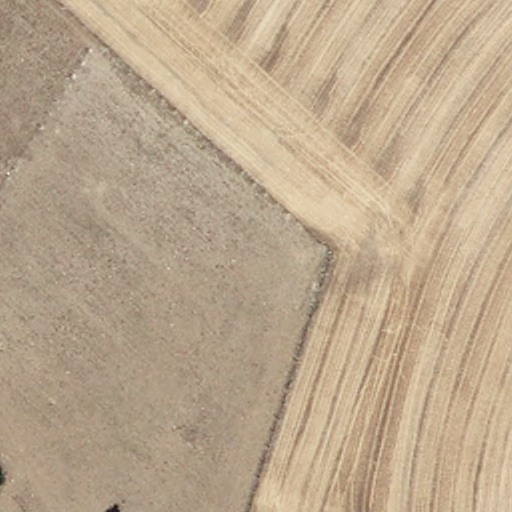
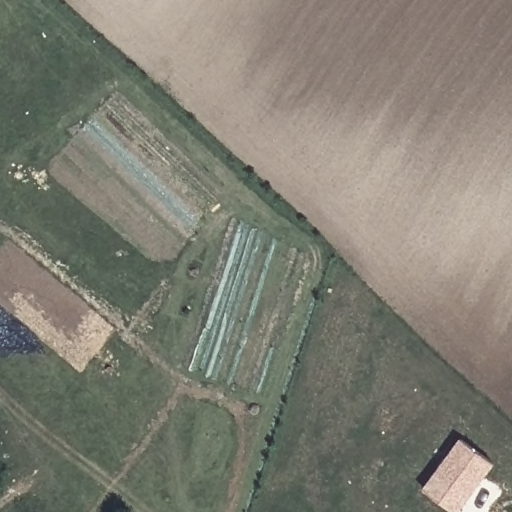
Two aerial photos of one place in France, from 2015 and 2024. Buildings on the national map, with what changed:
new [(458,512),(455,512),(423,488),(460,438),(495,464),(458,512)]

